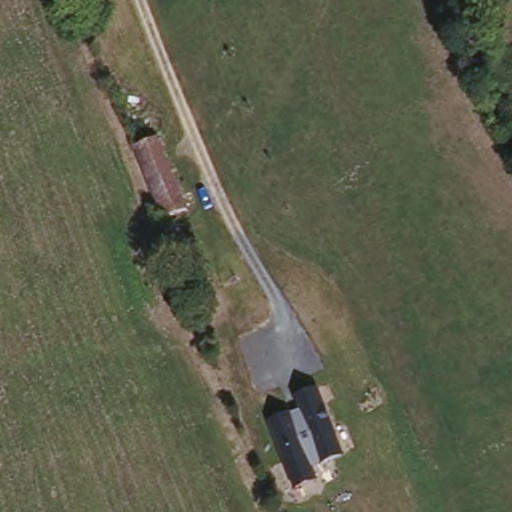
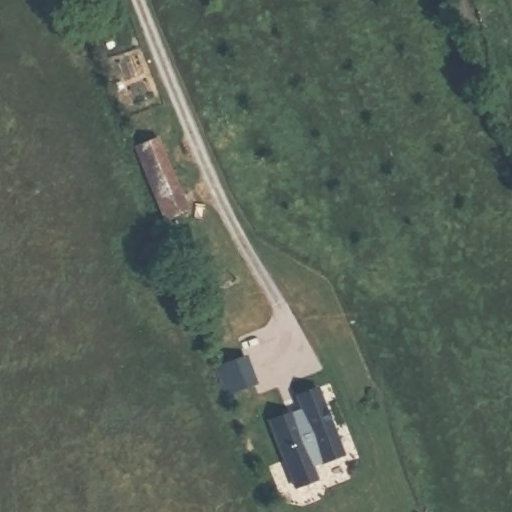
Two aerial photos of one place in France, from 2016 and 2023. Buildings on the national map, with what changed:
unchanged [(163,139),(186,212),(164,219),(141,145),(163,139)]
unchanged [(268,417),(298,407),(294,394),(319,385),(344,455),(311,469),(316,482),(295,489),(268,417)]

